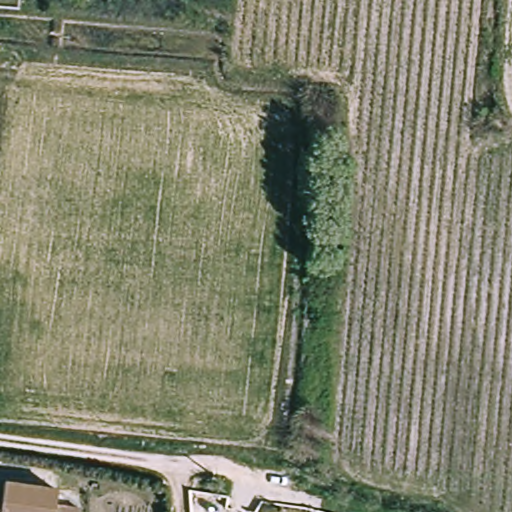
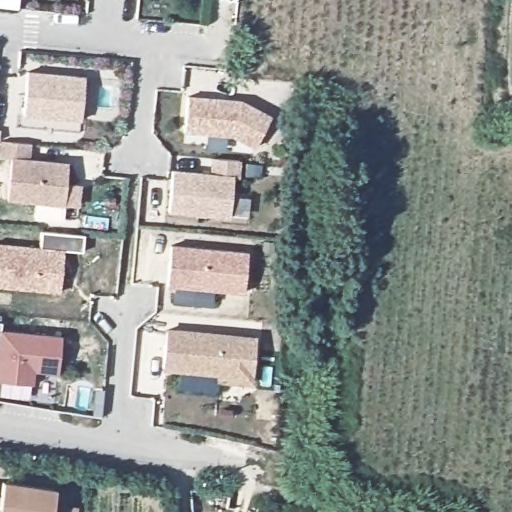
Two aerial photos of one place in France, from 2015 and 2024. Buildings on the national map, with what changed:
new [(82,122),(24,117),(27,72),(83,77),(82,122)]
new [(254,149),(231,136),(185,134),(187,96),(238,99),(270,117),(254,149)]
new [(7,202),(9,160),(0,159),(0,142),(31,144),(28,160),(66,163),(62,207),(7,202)]
new [(238,179),(233,178),(228,217),(172,215),(173,171),(211,174),(212,160),(240,162),(238,179)]
new [(63,251),(60,293),(0,288),(0,243),(40,247),(41,233),(83,237),(80,252),(63,251)]
new [(244,293),(168,288),(171,246),(247,251),(244,293)]
new [(252,385),(215,382),(215,376),(163,372),(165,329),(253,337),(252,385)]
new [(34,374),(32,386),(0,383),(0,336),(0,331),(60,336),(57,376),(34,374)]
unchanged [(210,481),(207,495),(195,492),(196,488),(197,478),(210,481)]
unchanged [(6,487),(60,491),(59,512),(0,512),(0,502),(5,502),(6,487)]

